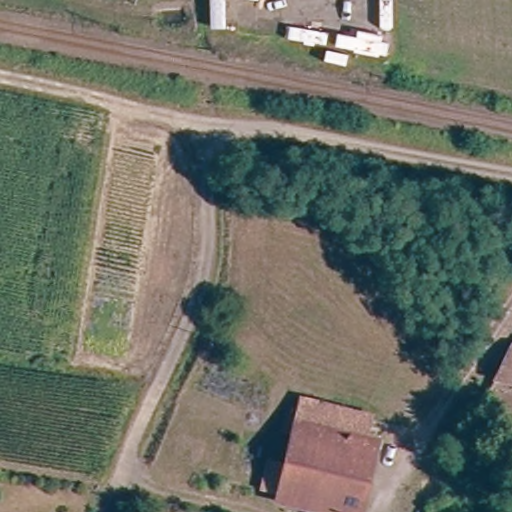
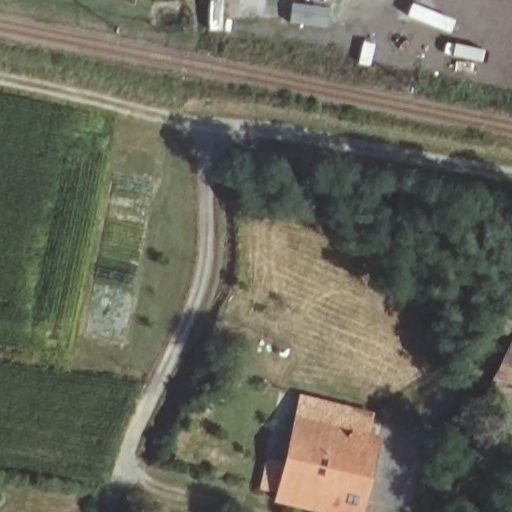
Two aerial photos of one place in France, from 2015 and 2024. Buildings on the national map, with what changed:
unchanged [(512,362),(512,383),(501,381),(512,362)]
unchanged [(321,506),(264,493),(272,461),(286,465),(294,431),(284,429),(288,411),(302,415),(307,396),(351,407),(346,425),(384,435),(365,512),(320,512),(321,506)]

